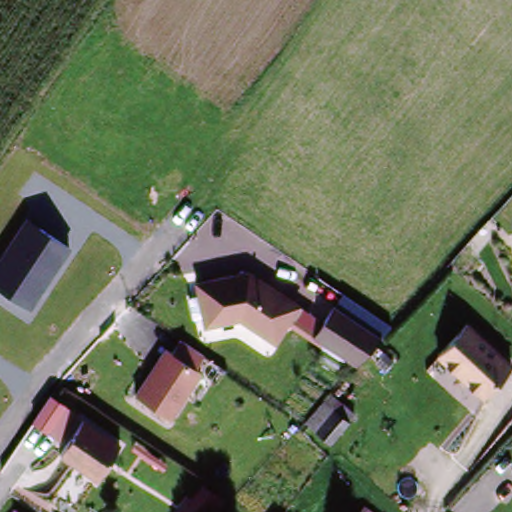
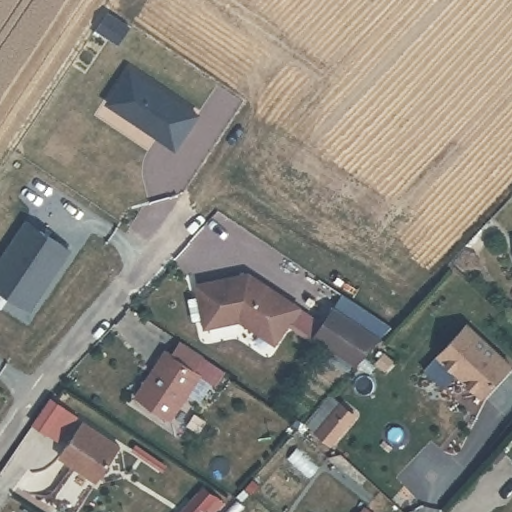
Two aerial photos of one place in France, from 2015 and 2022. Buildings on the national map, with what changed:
new [(127,65),(195,110),(173,142),(105,97),(127,65)]
unchanged [(70,252),(31,311),(0,291),(0,260),(25,223),(70,252)]
unchanged [(378,337),(352,371),(292,327),(276,347),(239,322),(204,330),(194,287),(249,273),(302,311),(296,318),(315,331),(335,305),(378,337)]
unchanged [(512,365),(512,367),(481,401),(433,356),(465,322),(512,365)]
unchanged [(203,357),(196,369),(203,375),(172,419),(135,393),(164,351),(169,353),(179,340),(203,357)]
unchanged [(334,412),(350,427),(331,446),(317,430),(334,412)]
unchanged [(118,445),(95,480),(59,453),(82,420),(118,445)]
unchanged [(184,505),(197,490),(209,498),(196,512),(177,512),(184,505)]
unchanged [(365,507),(372,512),(361,512),(365,507)]

